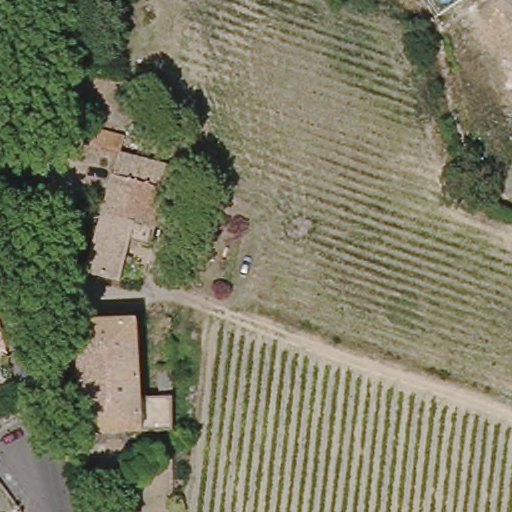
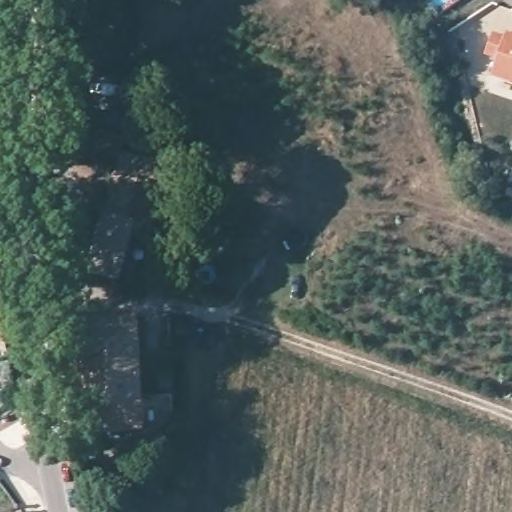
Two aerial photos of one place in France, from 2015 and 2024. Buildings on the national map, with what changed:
new [(492,76),(497,60),(484,56),(492,32),(505,36),(506,31),(512,33),(512,82),(492,76)]
unchanged [(116,154),(83,146),(88,128),(123,137),(118,152),(117,152),(116,154)]
unchanged [(167,166),(148,243),(128,239),(119,276),(86,268),(116,154),(117,152),(167,166)]
unchanged [(1,319),(3,327),(0,326),(0,296),(1,297),(1,319)]
unchanged [(85,430),(80,320),(136,318),(143,392),(173,392),(173,426),(85,430)]

